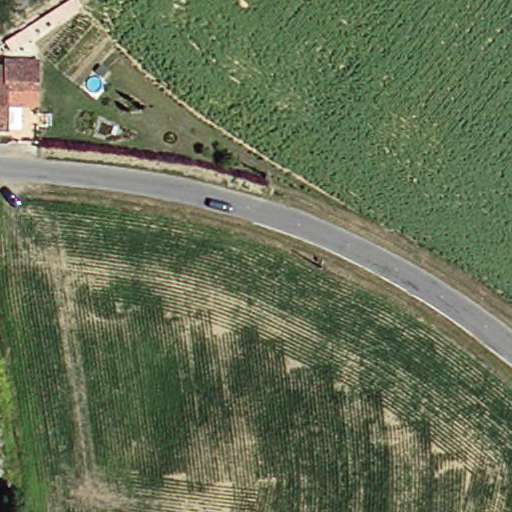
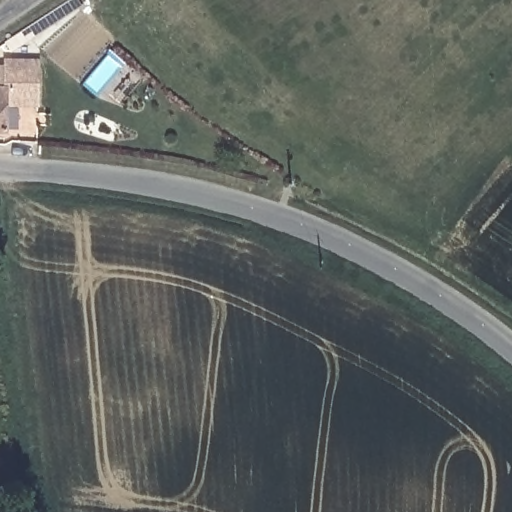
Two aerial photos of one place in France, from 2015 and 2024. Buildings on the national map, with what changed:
unchanged [(31,92),(31,108),(0,109),(0,66),(31,65),(31,92)]

